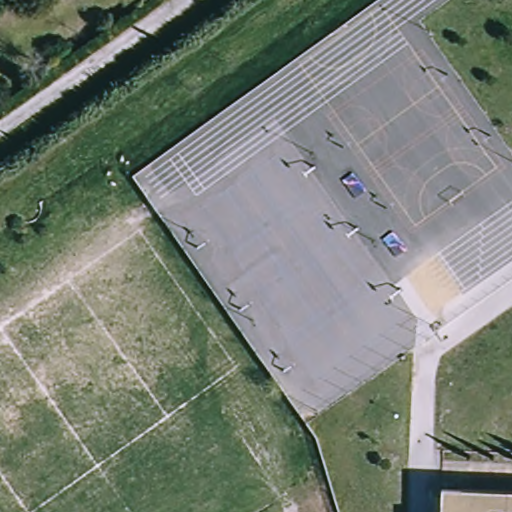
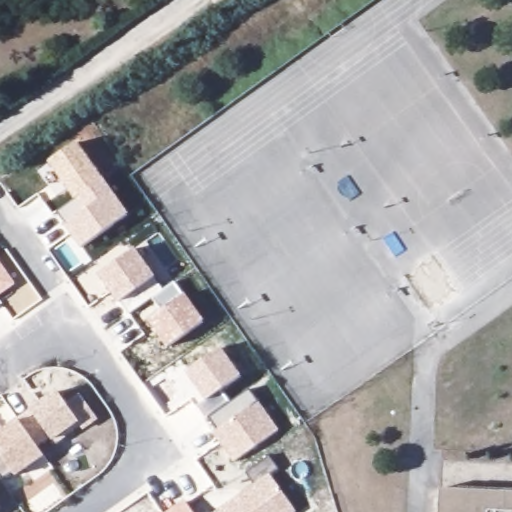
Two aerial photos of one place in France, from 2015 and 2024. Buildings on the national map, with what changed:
new [(58,212),(76,199),(50,162),(78,141),(130,214),(83,249),(66,226),(58,212)]
new [(161,311),(151,300),(128,316),(119,305),(98,276),(136,248),(157,278),(165,290),(176,283),(183,297),(186,294),(206,321),(169,349),(148,321),(161,311)]
new [(0,261),(17,284),(0,296),(0,261)]
new [(218,431),(209,419),(206,421),(197,408),(208,401),(188,371),(223,348),(243,376),(221,392),(229,403),(249,389),(279,430),(233,463),(213,434),(218,431)]
new [(68,404),(80,395),(99,420),(83,431),(80,428),(54,445),(51,441),(39,449),(44,457),(16,478),(13,473),(0,481),(0,432),(58,391),(68,404)]
new [(245,474),(271,457),(279,469),(270,475),(296,512),(216,512),(253,486),(245,474)]
unchanged [(512,491),(512,512),(438,512),(439,488),(512,491)]
new [(168,512),(185,500),(194,512),(168,512)]

